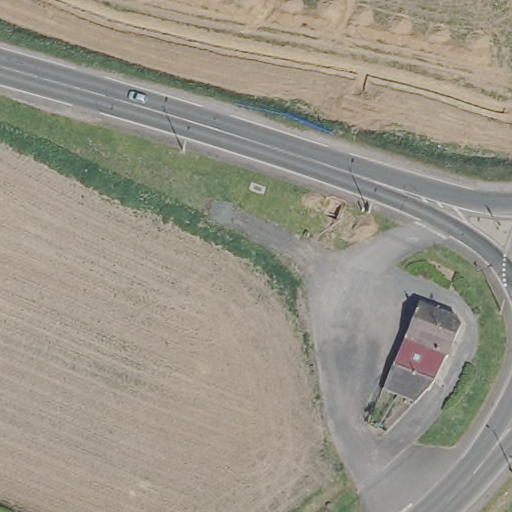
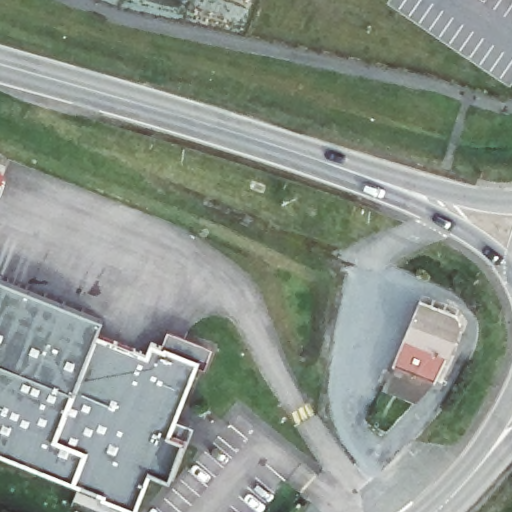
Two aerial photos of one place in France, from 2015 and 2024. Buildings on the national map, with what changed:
new [(0,270),(103,309),(100,319),(113,324),(110,334),(148,349),(152,338),(161,342),(168,324),(212,342),(205,362),(195,358),(168,429),(183,437),(170,472),(150,464),(135,504),(101,491),(103,487),(0,448),(0,270)]
unchanged [(461,312),(428,379),(415,392),(380,376),(420,294),(461,312)]

